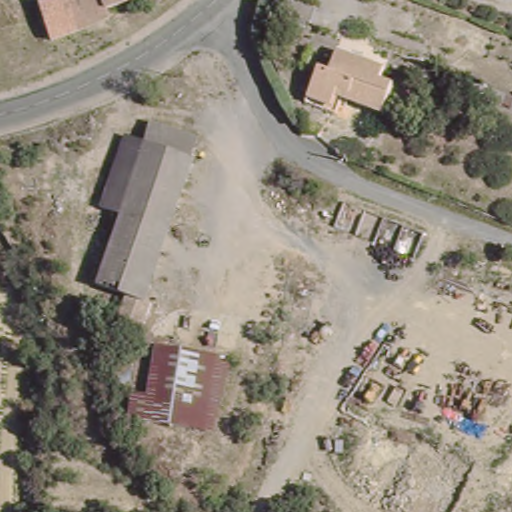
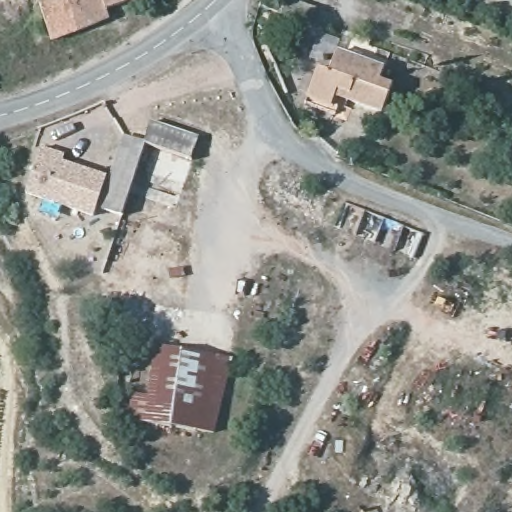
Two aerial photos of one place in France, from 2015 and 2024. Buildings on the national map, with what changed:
unchanged [(105,25),(47,41),(38,7),(61,1),(61,0),(99,0),(102,12),(105,25)]
unchanged [(99,0),(139,0),(102,12),(99,0)]
unchanged [(375,69),(372,77),(387,82),(377,112),(330,99),(327,107),(302,100),(312,70),(323,72),(329,56),(375,69)]
unchanged [(197,160),(152,145),(159,125),(203,141),(197,160)]
unchanged [(129,137),(140,141),(125,215),(105,207),(129,137)]
unchanged [(152,145),(125,215),(140,141),(152,145)]
new [(107,178),(93,217),(27,194),(42,149),(57,154),(55,160),(107,178)]
demolished [(155,315),(149,332),(119,322),(127,298),(142,305),(147,305),(157,308),(155,315)]
unchanged [(157,350),(202,358),(225,362),(223,367),(210,436),(130,422),(135,395),(147,396),(157,350)]

